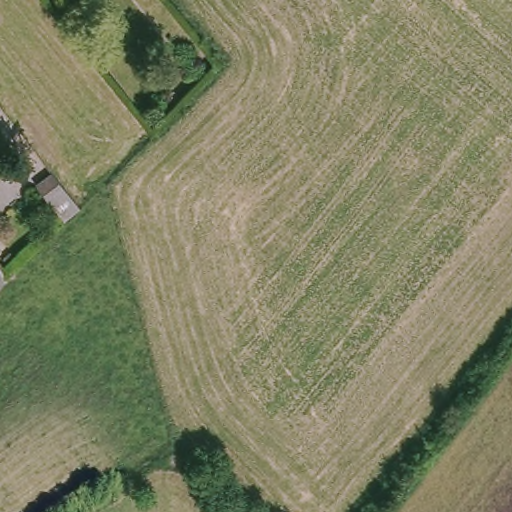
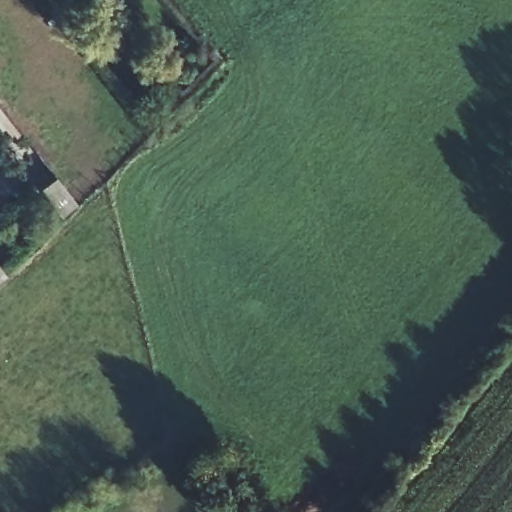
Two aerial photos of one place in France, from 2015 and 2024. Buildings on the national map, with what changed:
unchanged [(80,200),(65,215),(38,185),(55,170),(80,200)]
unchanged [(0,272),(0,255),(8,264),(0,272)]

